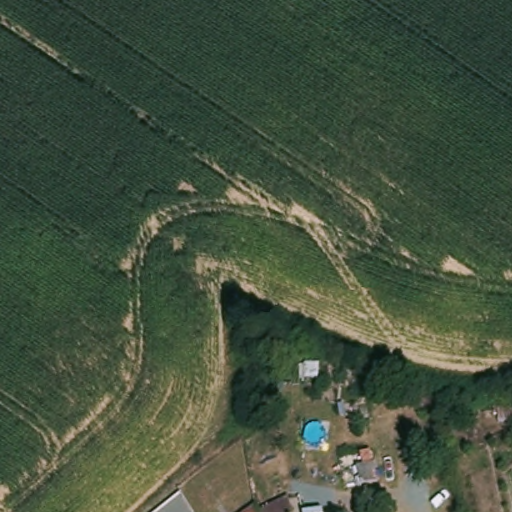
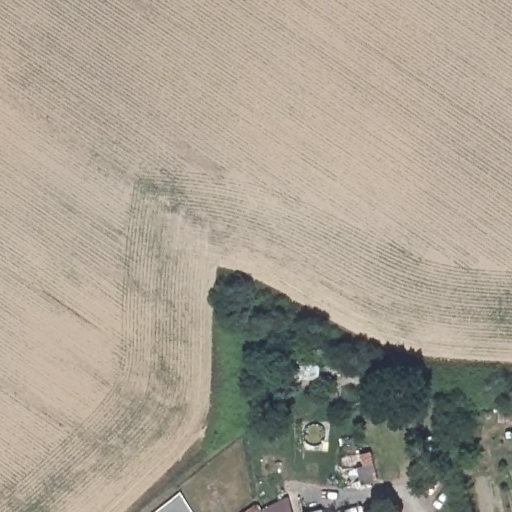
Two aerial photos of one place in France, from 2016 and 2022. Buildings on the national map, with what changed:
unchanged [(368,500),(364,482),(370,480),(368,469),(382,466),(387,495),(368,500)]
unchanged [(249,503),(286,494),(292,512),(249,512),(249,503)]

